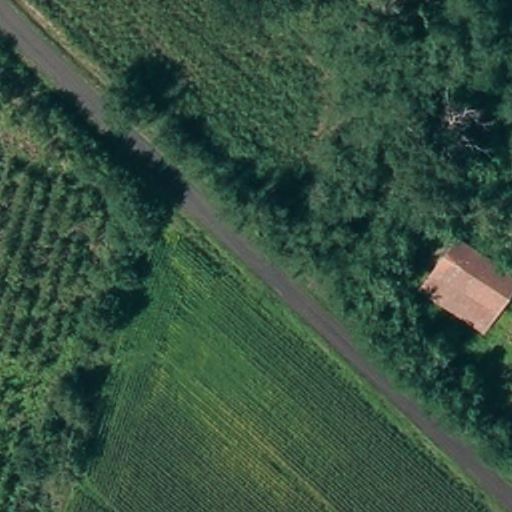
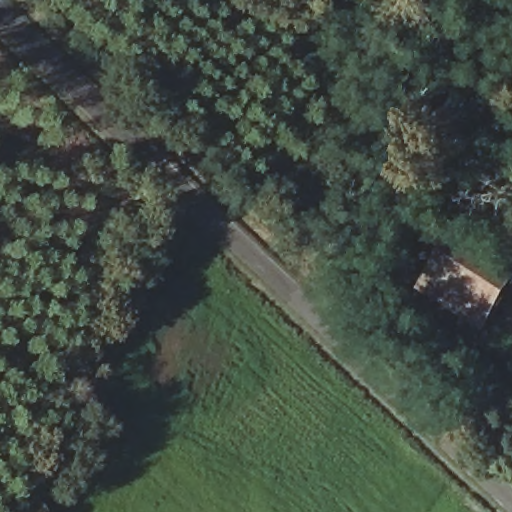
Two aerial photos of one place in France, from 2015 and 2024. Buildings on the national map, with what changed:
unchanged [(512,275),(512,280),(480,330),(416,289),(451,235),(512,275)]

